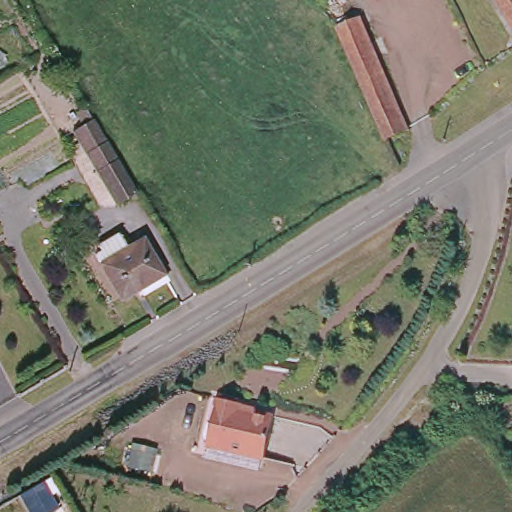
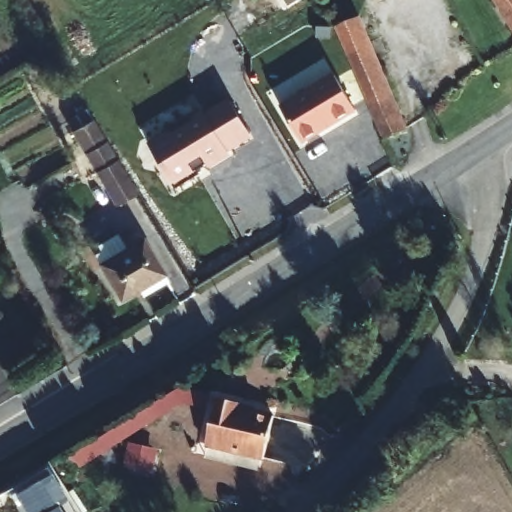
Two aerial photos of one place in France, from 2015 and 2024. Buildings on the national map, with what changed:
unchanged [(493,0),(512,0),(512,34),(493,0)]
unchanged [(360,25),(401,132),(381,140),(350,63),(338,34),(360,25)]
new [(357,111),(305,143),(280,106),(334,76),(357,111)]
new [(255,139),(177,189),(149,144),(228,97),(255,139)]
unchanged [(88,119),(132,190),(110,202),(70,131),(88,119)]
unchanged [(135,292),(118,302),(90,254),(94,252),(91,247),(112,235),(122,251),(137,242),(163,286),(149,295),(140,300),(135,292)]
unchanged [(215,402),(238,407),(237,412),(272,420),(262,462),(205,448),(215,402)]
new [(45,478),(55,477),(70,498),(59,506),(63,512),(26,512),(17,499),(45,478)]

